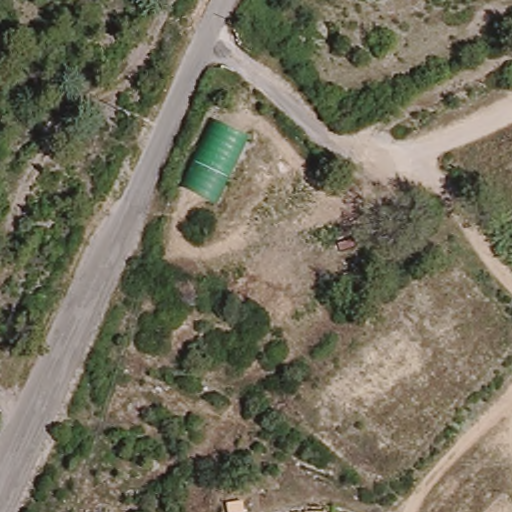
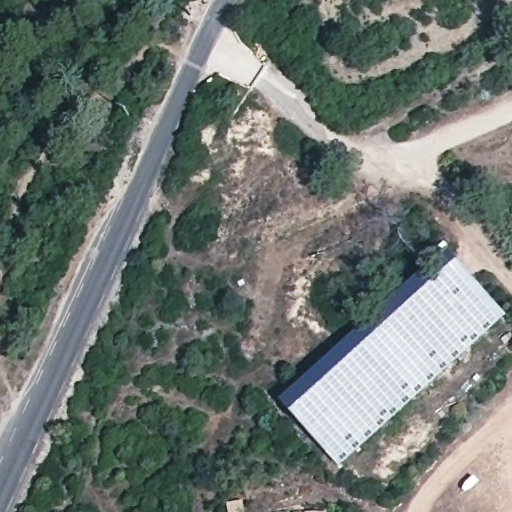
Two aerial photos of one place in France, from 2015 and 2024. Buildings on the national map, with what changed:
new [(448,253),(508,318),(341,469),(281,402),(448,253)]
demolished [(410,398),(374,429),(355,406),(388,377),(410,398)]

